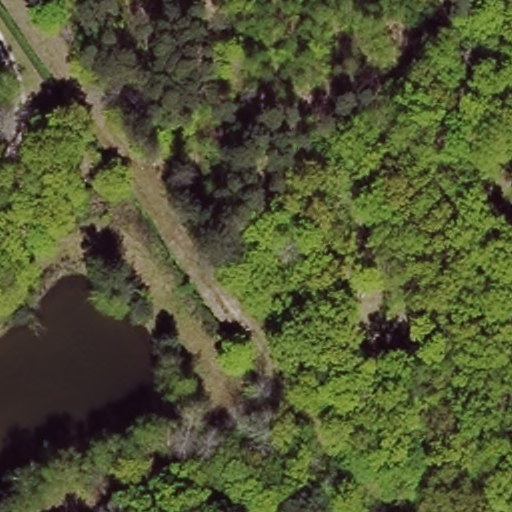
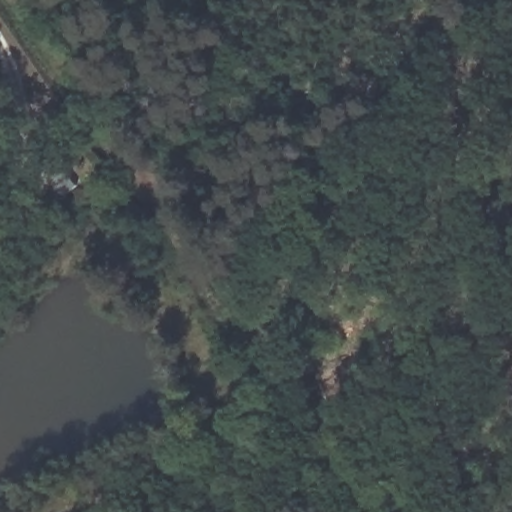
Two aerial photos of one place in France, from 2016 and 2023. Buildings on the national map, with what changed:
unchanged [(69,180),(59,187),(48,176),(57,167),(69,180)]

